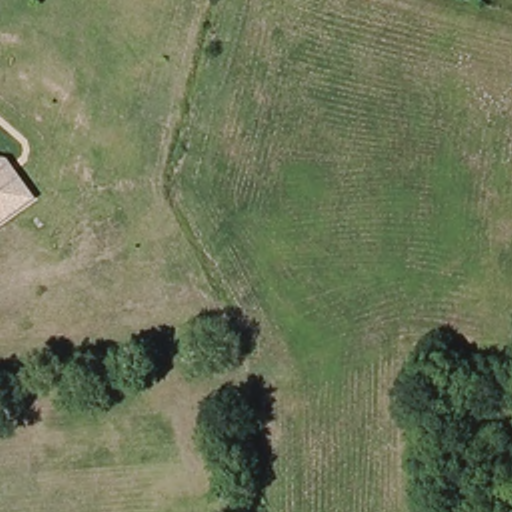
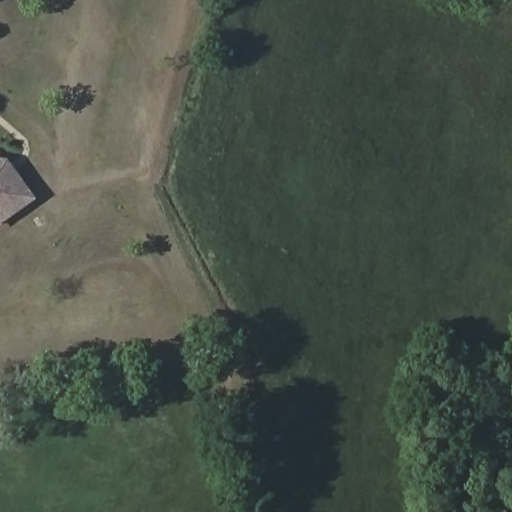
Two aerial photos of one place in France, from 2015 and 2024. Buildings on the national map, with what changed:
unchanged [(0,155),(2,155),(26,193),(0,214),(0,155)]

